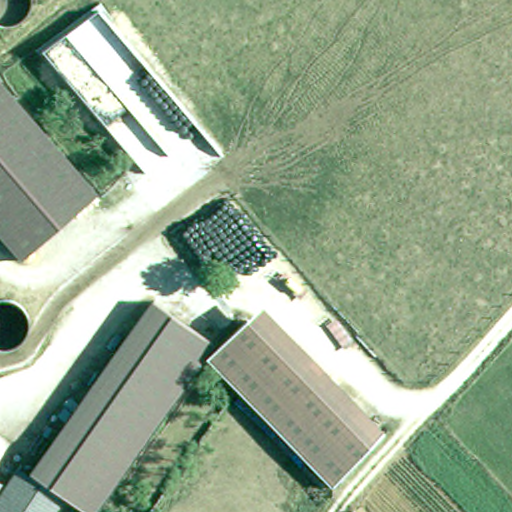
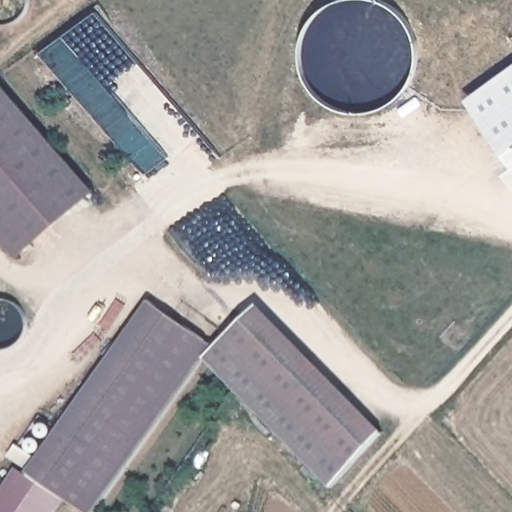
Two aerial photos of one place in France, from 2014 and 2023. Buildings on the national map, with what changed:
new [(512,65),(512,158),(468,97),(512,65)]
unchanged [(92,194),(17,258),(0,240),(0,88),(92,194)]
unchanged [(210,340),(90,512),(89,512),(61,494),(25,471),(147,296),(210,340)]
unchanged [(237,392),(230,385),(225,380),(205,359),(202,356),(252,301),(378,428),(350,459),(327,484),(237,392)]
unchanged [(49,512),(0,512),(0,485),(15,463),(25,471),(61,494),(49,512)]

